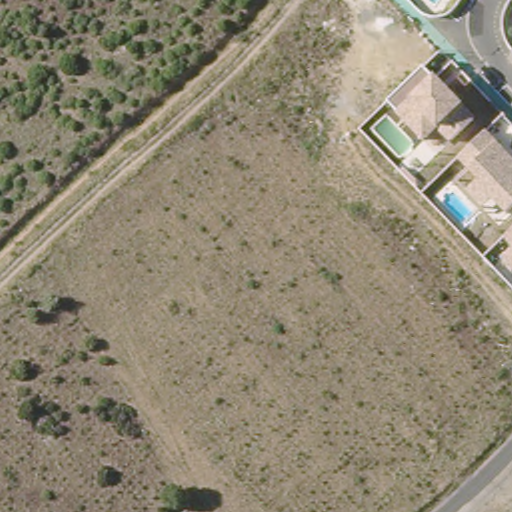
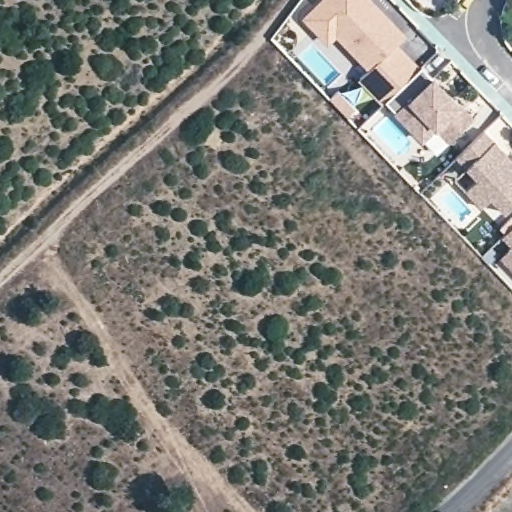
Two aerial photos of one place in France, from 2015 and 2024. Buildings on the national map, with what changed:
new [(382,105),(359,80),(368,70),(337,37),(328,45),(303,17),(321,0),(372,0),(407,35),(399,44),(423,66),(386,101),(382,105)]
unchanged [(386,101),(423,66),(434,76),(460,104),(474,120),(449,142),(437,130),(424,142),(386,101)]
unchanged [(484,208),(456,179),(466,170),(456,158),(488,129),(512,157),(512,208),(507,214),(493,199),(484,208)]
unchanged [(512,228),(512,247),(503,236),(512,228)]
unchanged [(512,247),(512,268),(501,256),(512,247)]

